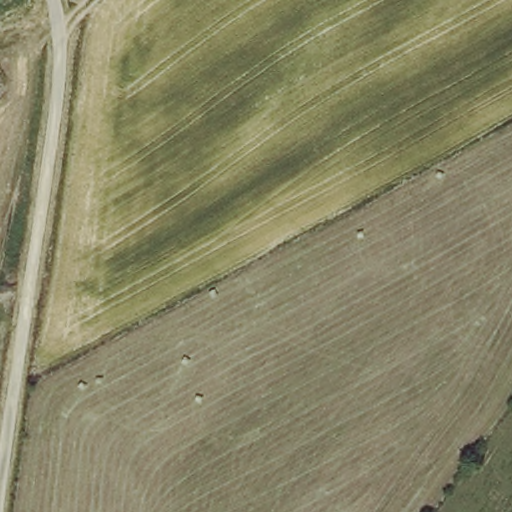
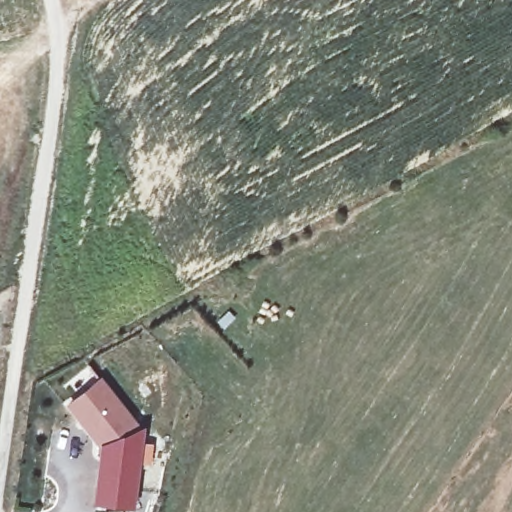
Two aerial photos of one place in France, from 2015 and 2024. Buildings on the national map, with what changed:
new [(133,510),(93,504),(99,444),(66,404),(101,377),(140,428),(144,427),(133,510)]

